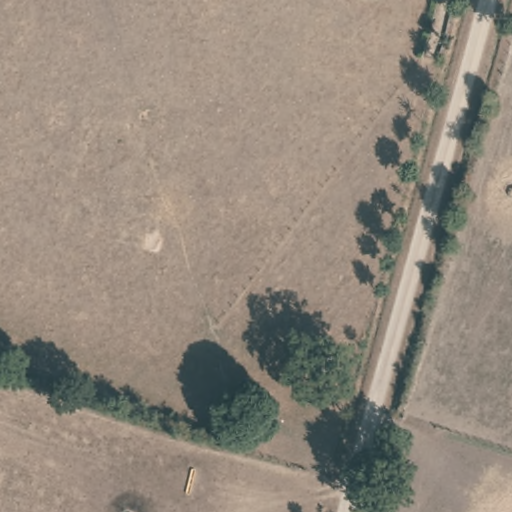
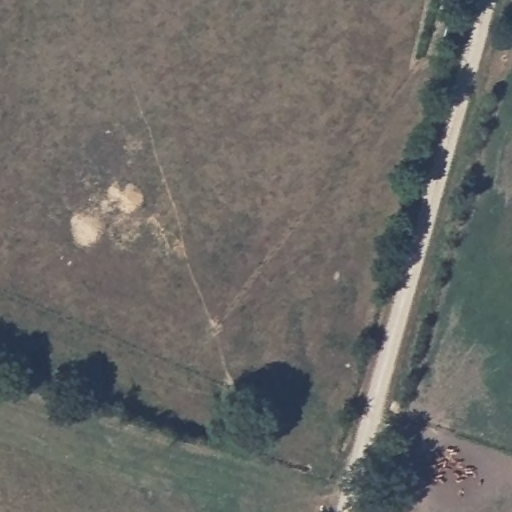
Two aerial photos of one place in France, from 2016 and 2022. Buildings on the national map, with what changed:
[]

